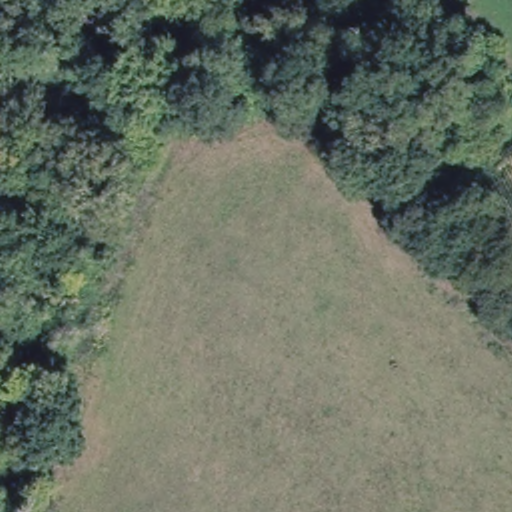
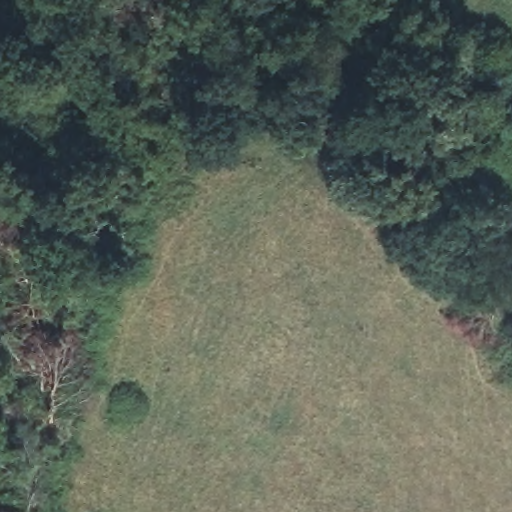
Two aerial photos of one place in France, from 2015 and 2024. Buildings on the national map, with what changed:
[]

